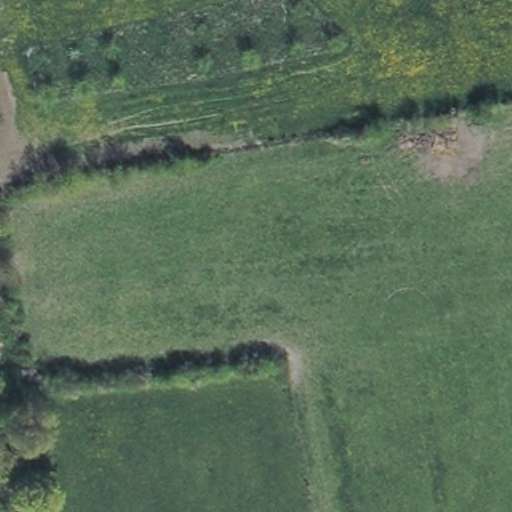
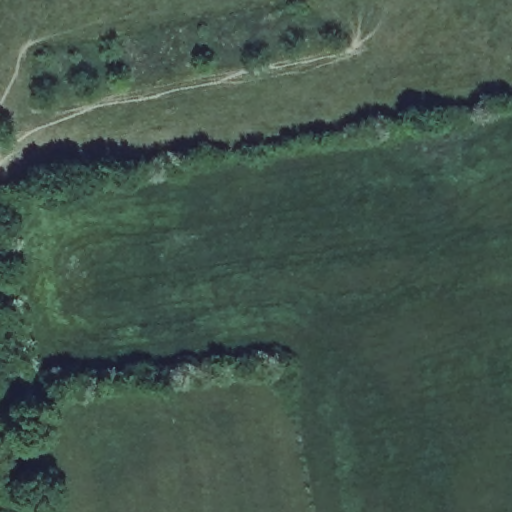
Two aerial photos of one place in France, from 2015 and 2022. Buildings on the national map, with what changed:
[]

